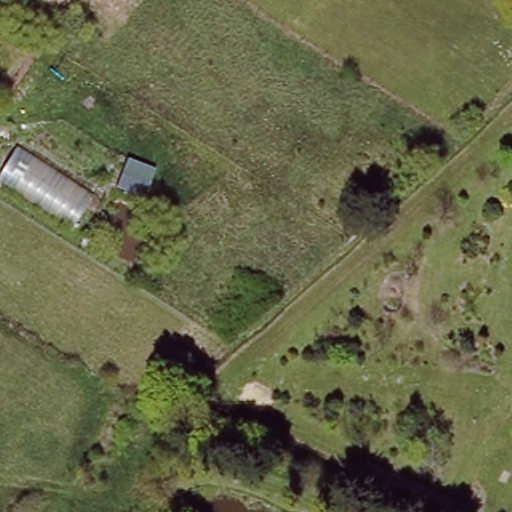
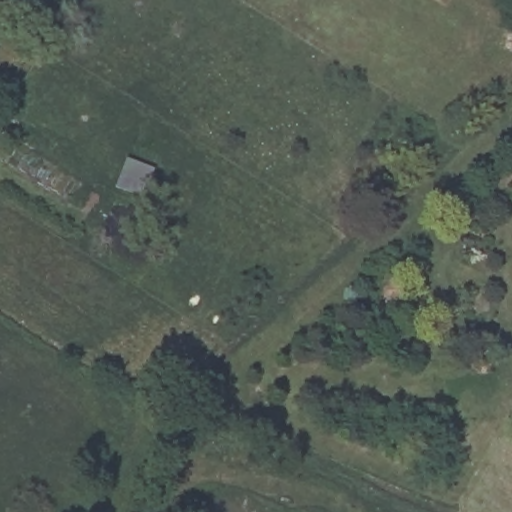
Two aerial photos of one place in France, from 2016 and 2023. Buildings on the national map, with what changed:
demolished [(73,229),(0,181),(0,174),(17,146),(90,195),(73,229)]
new [(127,158),(155,169),(145,197),(117,186),(127,158)]

